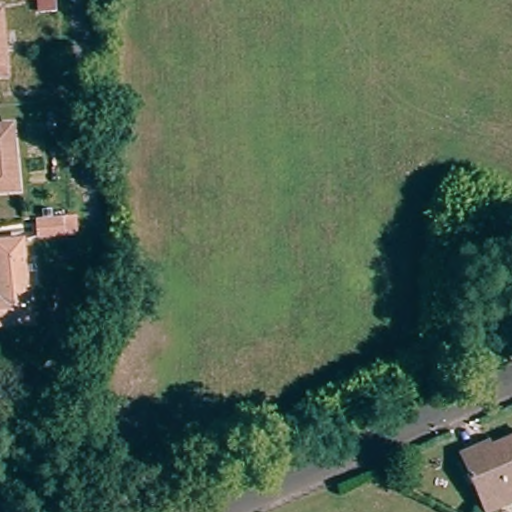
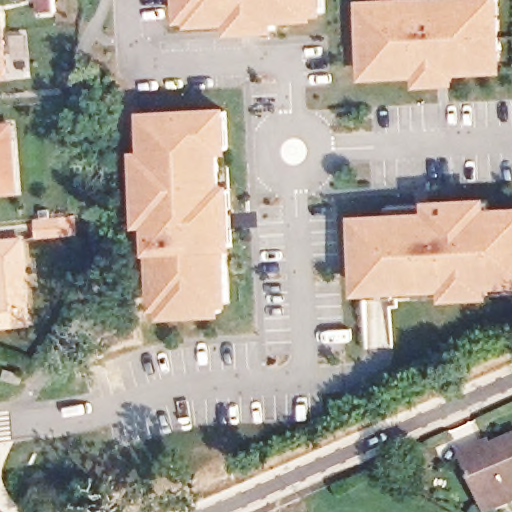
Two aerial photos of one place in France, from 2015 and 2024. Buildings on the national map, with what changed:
unchanged [(23,1),(23,0),(28,0),(23,1)]
unchanged [(39,14),(38,0),(54,0),(55,13),(39,14)]
new [(330,17),(319,17),(319,22),(280,23),(281,36),(232,38),(231,26),(191,28),(190,23),(180,24),(179,0),(329,0),(330,17)]
new [(376,0),(502,0),(505,74),(458,76),(458,86),(417,89),(416,78),(362,82),(359,1),(376,0)]
unchanged [(7,76),(0,77),(0,11),(1,11),(7,76)]
new [(232,107),(234,154),(224,154),(226,185),(236,184),(239,251),(230,251),(233,308),(226,308),(226,318),(152,322),(149,255),(148,229),(140,229),(135,151),(144,150),(143,112),(232,107)]
unchanged [(18,191),(0,192),(0,127),(11,126),(18,191)]
new [(429,201),(493,197),(493,208),(512,206),(512,287),(497,288),(498,298),(448,302),(448,298),(420,300),(421,292),(359,296),(356,215),(430,210),(429,201)]
unchanged [(76,234),(71,234),(38,237),(37,220),(70,217),(75,216),(76,234)]
unchanged [(29,324),(0,326),(0,242),(22,240),(29,324)]
unchanged [(20,384),(4,380),(6,370),(22,375),(20,384)]
unchanged [(485,512),(480,502),(459,455),(478,447),(482,457),(489,454),(486,448),(512,436),(512,501),(487,512),(485,512)]

